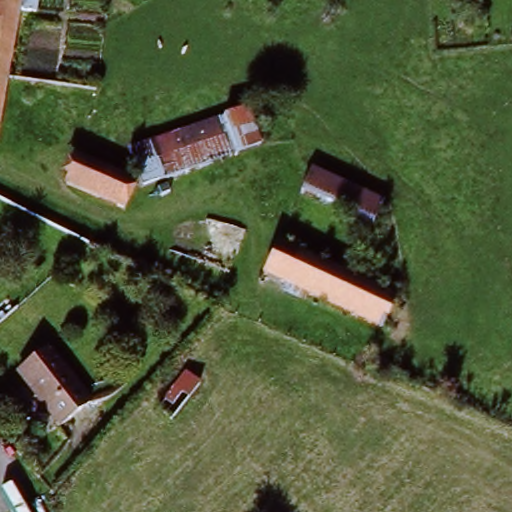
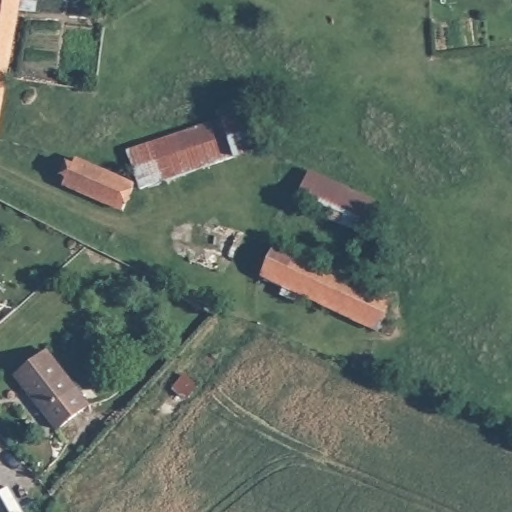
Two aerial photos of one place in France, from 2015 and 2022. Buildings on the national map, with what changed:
unchanged [(15,6),(0,81),(0,0),(16,0),(15,6)]
unchanged [(37,11),(15,6),(16,0),(39,0),(37,11)]
unchanged [(245,109),(262,151),(142,195),(125,150),(245,109)]
unchanged [(135,184),(123,212),(61,186),(72,157),(135,184)]
unchanged [(387,200),(375,231),(298,196),(313,167),(387,200)]
unchanged [(395,288),(387,308),(275,258),(283,238),(395,288)]
unchanged [(375,333),(262,286),(275,258),(387,308),(375,333)]
unchanged [(5,325),(0,329),(0,320),(5,325)]
unchanged [(47,349),(92,399),(62,425),(17,375),(47,349)]
unchanged [(190,371),(205,386),(173,419),(158,405),(190,371)]

